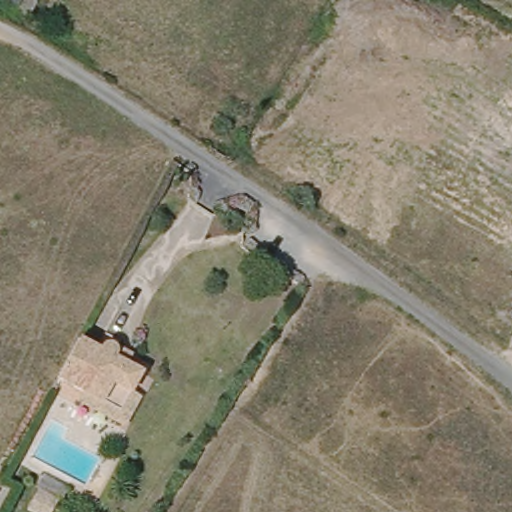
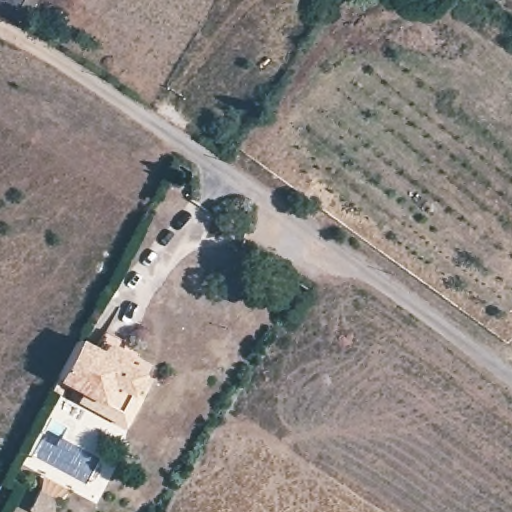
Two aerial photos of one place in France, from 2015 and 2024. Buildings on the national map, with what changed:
unchanged [(7,0),(22,0),(20,6),(7,0)]
unchanged [(124,425),(78,399),(82,390),(57,377),(78,337),(99,349),(104,343),(113,344),(123,349),(132,355),(127,364),(140,372),(130,391),(140,396),(124,425)]
unchanged [(43,477),(66,494),(56,512),(32,512),(22,507),(43,477)]

